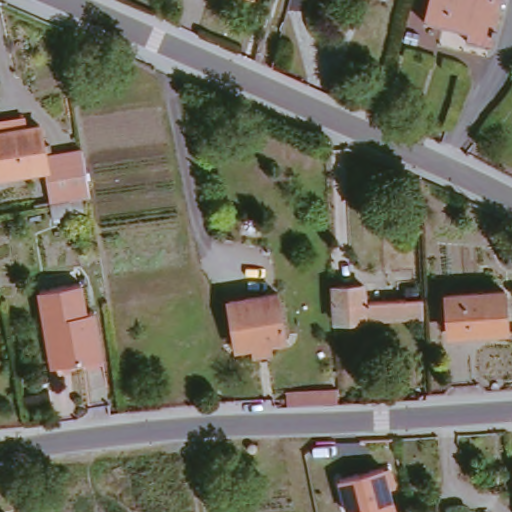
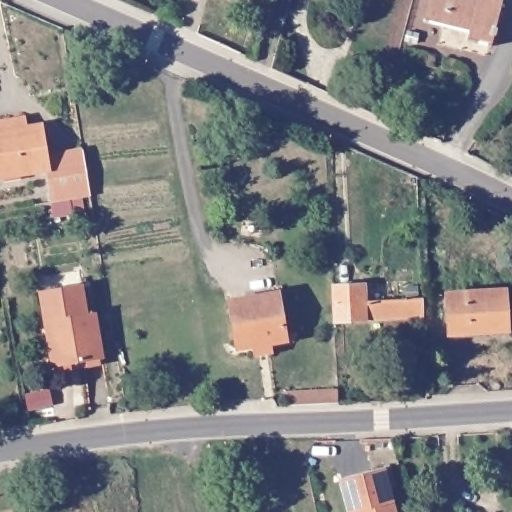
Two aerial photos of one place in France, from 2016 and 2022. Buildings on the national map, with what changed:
unchanged [(428,21),(434,0),(508,0),(495,47),(468,41),(470,32),(428,21)]
unchanged [(0,149),(0,124),(29,119),(31,131),(48,127),(54,161),(4,171),(0,149)]
unchanged [(65,222),(63,207),(54,161),(85,155),(94,202),(80,205),(82,220),(65,222)]
unchanged [(343,325),(337,292),(367,288),(370,305),(428,299),(431,316),(343,325)]
unchanged [(55,328),(47,330),(40,299),(83,292),(88,323),(96,322),(103,366),(65,374),(55,328)]
unchanged [(450,298),(508,294),(512,333),(453,337),(450,298)]
unchanged [(231,307),(280,295),(292,339),(245,352),(231,307)]
unchanged [(278,392),(327,387),(330,403),(280,407),(278,392)]
unchanged [(397,512),(349,512),(345,512),(335,478),(383,466),(392,497),(397,512)]

